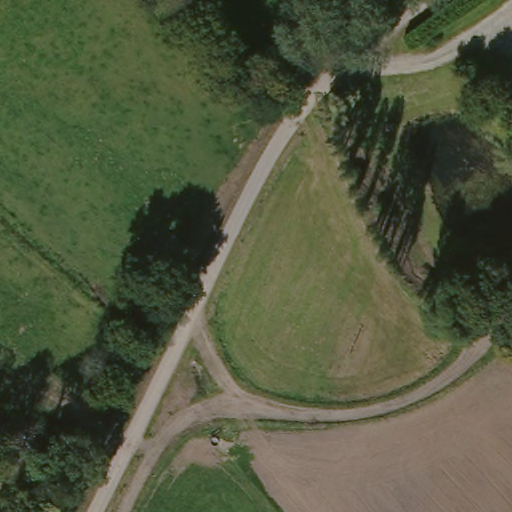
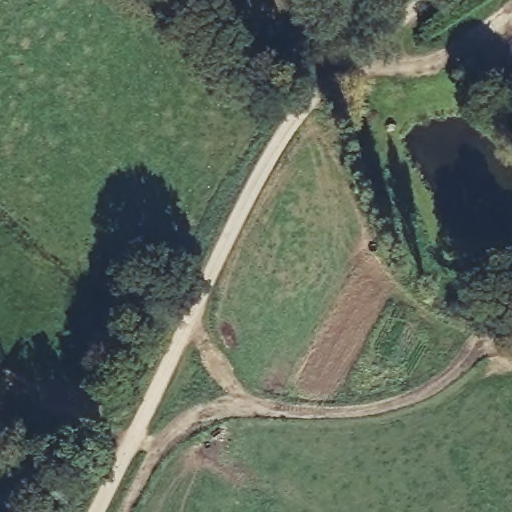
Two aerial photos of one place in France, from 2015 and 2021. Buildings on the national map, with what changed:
[]

